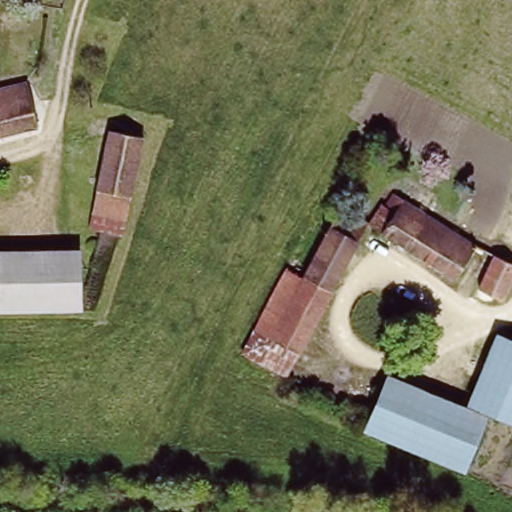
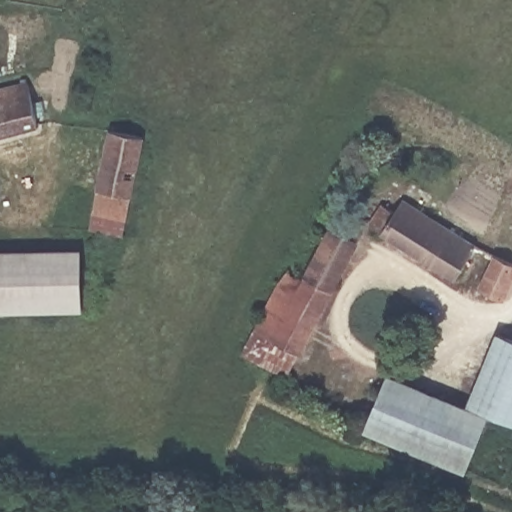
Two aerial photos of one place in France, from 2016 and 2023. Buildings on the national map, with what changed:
unchanged [(28,82),(38,126),(0,136),(0,90),(28,82)]
unchanged [(134,142),(122,203),(92,197),(103,136),(134,142)]
unchanged [(472,246),(450,279),(370,229),(392,196),(472,246)]
unchanged [(122,203),(117,236),(85,232),(92,197),(122,203)]
unchanged [(335,209),(362,224),(353,242),(295,355),(252,331),(285,267),(301,275),(325,228),(335,209)]
unchanged [(75,250),(77,307),(0,311),(0,252),(75,250)]
unchanged [(512,277),(502,301),(480,292),(496,257),(512,265),(512,277)]
unchanged [(295,355),(284,376),(240,352),(252,331),(295,355)]
unchanged [(512,423),(483,411),(466,404),(495,335),(512,342),(512,423)]
unchanged [(466,404),(483,411),(457,471),(361,431),(385,371),(466,404)]

